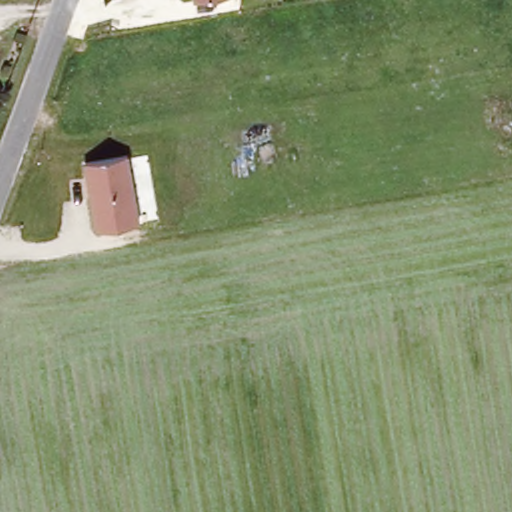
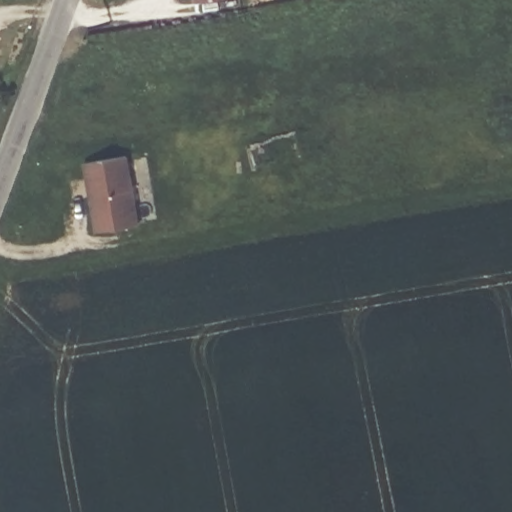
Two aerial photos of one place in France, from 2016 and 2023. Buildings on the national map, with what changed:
unchanged [(128,155),(138,223),(98,230),(87,162),(128,155)]

